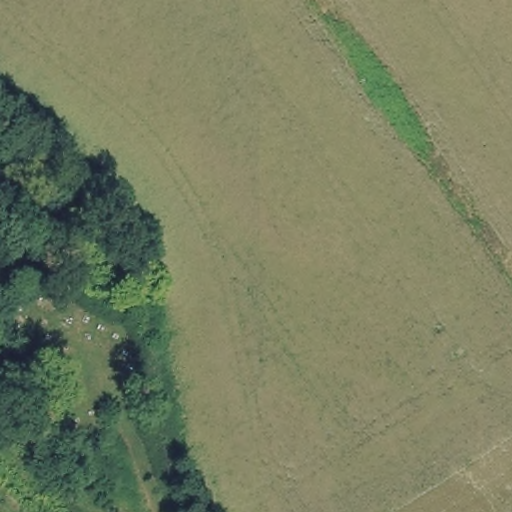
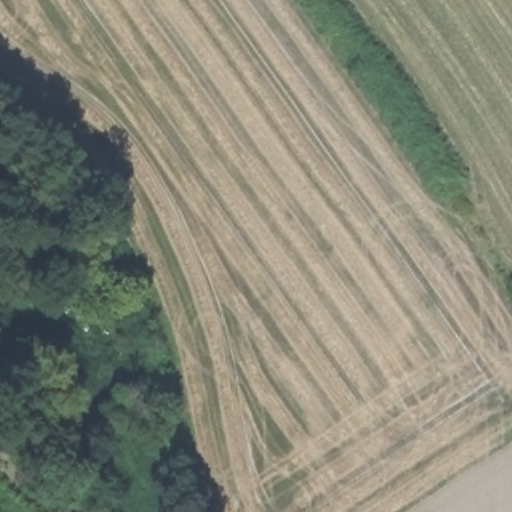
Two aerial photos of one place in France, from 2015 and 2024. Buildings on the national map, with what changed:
[]

